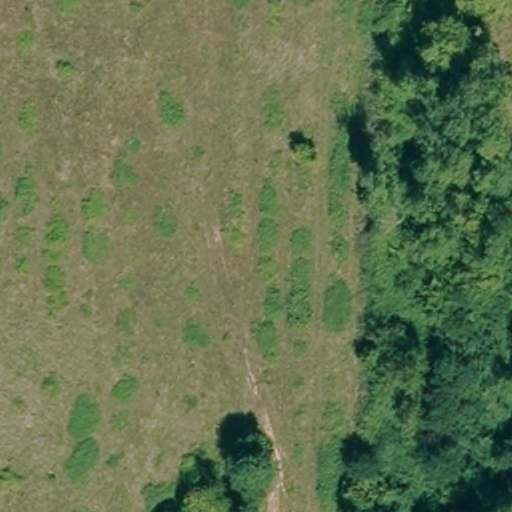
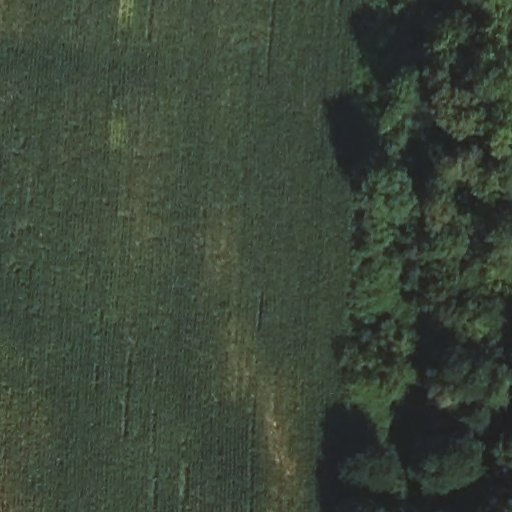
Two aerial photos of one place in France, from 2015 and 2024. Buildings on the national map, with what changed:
[]

